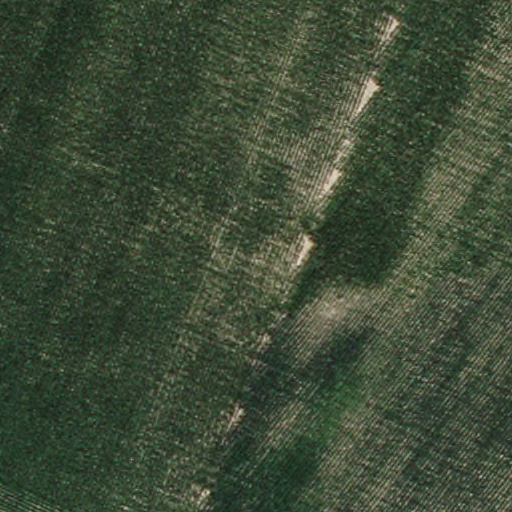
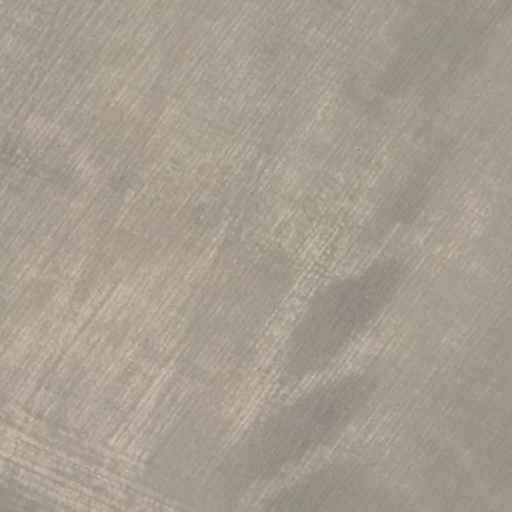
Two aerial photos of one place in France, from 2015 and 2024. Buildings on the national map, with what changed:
[]

